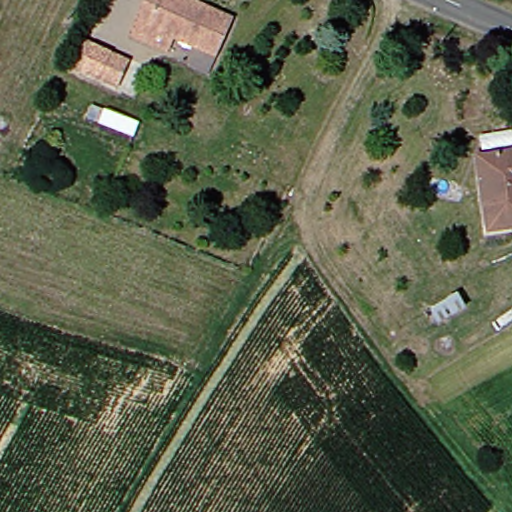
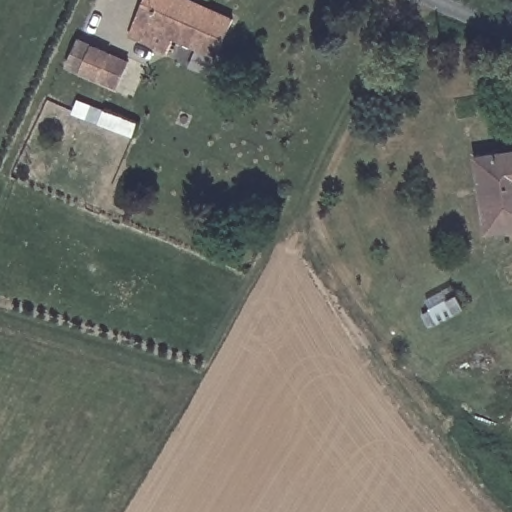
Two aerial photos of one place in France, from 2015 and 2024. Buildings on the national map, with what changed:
unchanged [(172,40),(164,58),(125,41),(133,23),(143,0),(179,0),(193,6),(226,20),(210,57),(172,40)]
unchanged [(121,66),(111,90),(72,74),(83,49),(121,66)]
unchanged [(489,232),(476,160),(512,154),(512,227),(489,232)]

